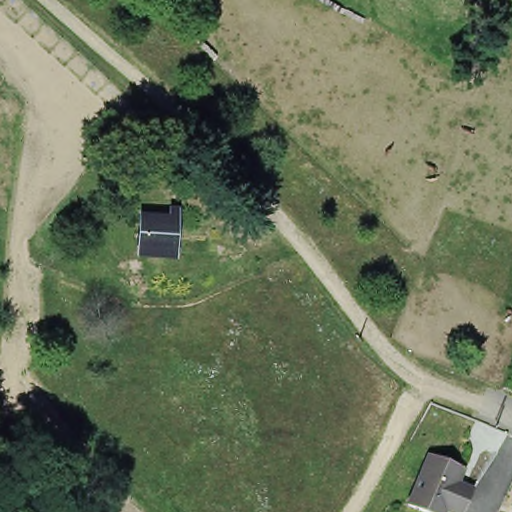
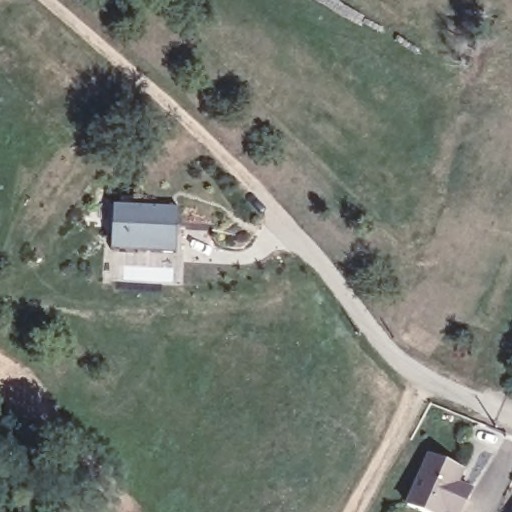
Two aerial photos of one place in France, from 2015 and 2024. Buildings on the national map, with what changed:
new [(112,252),(115,204),(178,208),(177,217),(176,249),(176,256),(138,255),(112,252)]
demolished [(169,249),(138,247),(139,216),(170,217),(169,249)]
unchanged [(428,455),(462,470),(455,485),(471,491),(463,512),(447,512),(443,511),(442,512),(421,512),(406,506),(428,455)]

